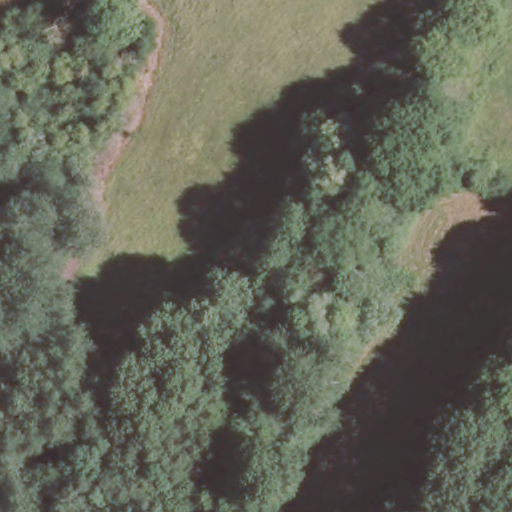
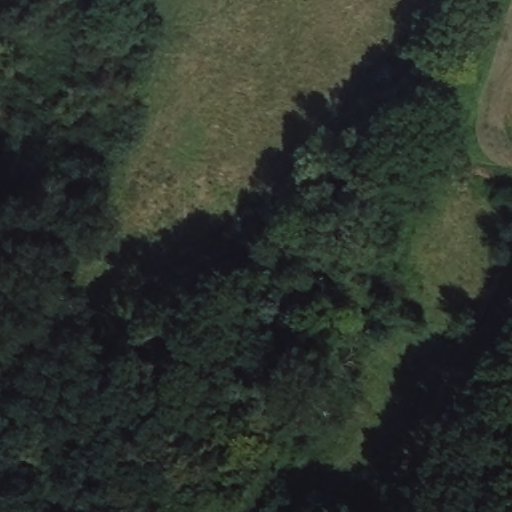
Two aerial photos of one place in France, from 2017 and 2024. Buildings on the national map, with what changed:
unchanged [(409,512),(392,512),(399,503),(409,512)]

